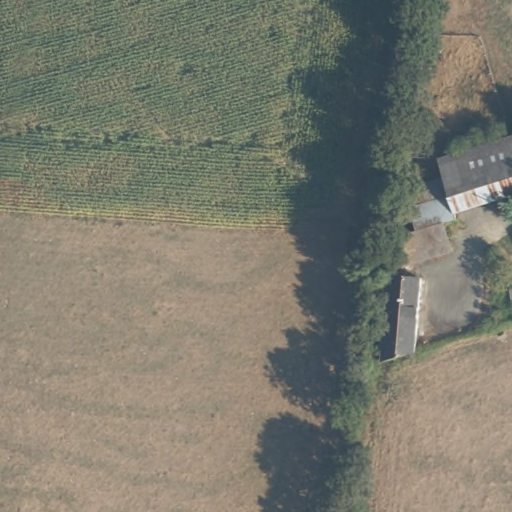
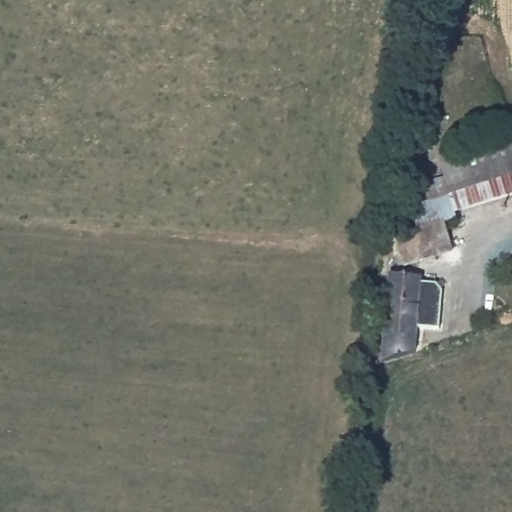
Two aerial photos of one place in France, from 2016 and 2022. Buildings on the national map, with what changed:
unchanged [(444,220),(452,252),(404,264),(397,233),(416,225),(402,184),(443,168),(436,153),(512,131),(512,198),(444,220)]
unchanged [(391,270),(425,276),(416,348),(375,362),(391,270)]

